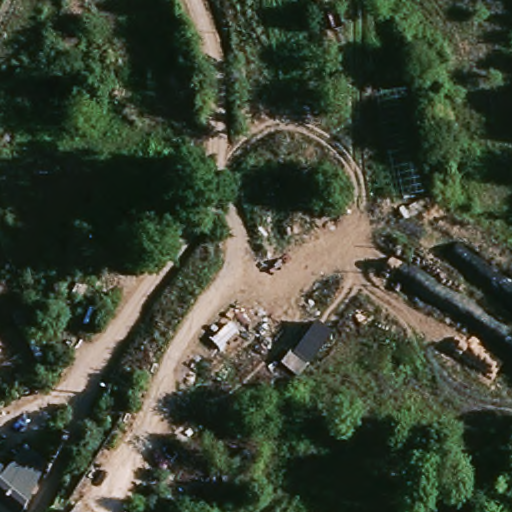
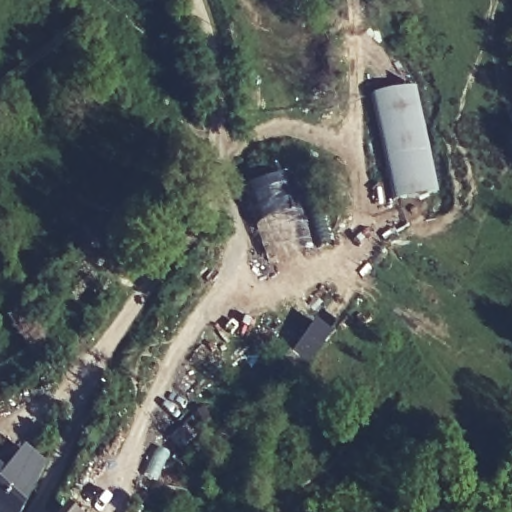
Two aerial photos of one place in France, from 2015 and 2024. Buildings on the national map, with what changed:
new [(415,87),(438,190),(394,201),(372,97),(415,87)]
unchanged [(49,360),(34,368),(9,315),(14,313),(9,300),(23,295),(49,360)]
unchanged [(13,512),(0,512),(0,477),(13,484),(41,432),(52,438),(13,512)]
unchanged [(69,512),(65,512),(66,510),(69,512)]

